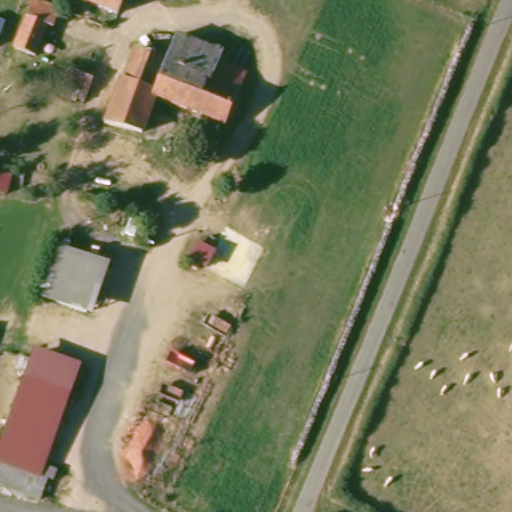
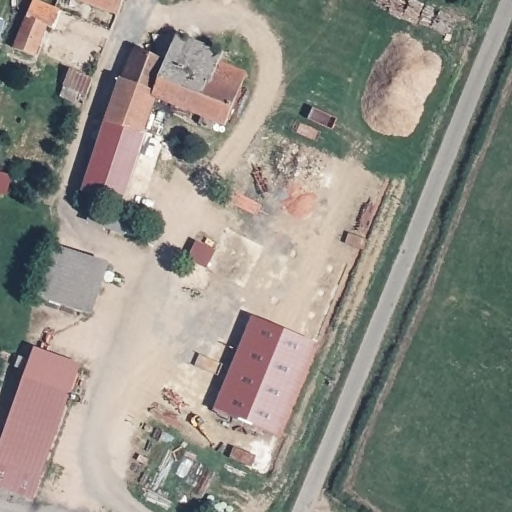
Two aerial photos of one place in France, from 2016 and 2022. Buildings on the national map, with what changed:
unchanged [(81,0),(130,0),(123,18),(81,0)]
unchanged [(20,54),(30,20),(35,4),(55,7),(60,8),(56,25),(49,23),(39,58),(26,56),(21,71),(12,71),(20,54)]
unchanged [(0,43),(0,21),(7,24),(0,43)]
unchanged [(152,101),(168,66),(180,41),(230,60),(225,71),(245,79),(226,130),(157,103),(152,101)]
unchanged [(152,101),(157,103),(143,137),(106,128),(112,111),(123,86),(136,54),(168,66),(152,101)]
unchanged [(62,93),(71,67),(95,77),(85,102),(62,93)]
unchanged [(0,173),(13,178),(8,198),(0,195),(0,173)]
unchanged [(190,260),(198,243),(217,253),(207,271),(190,260)]
unchanged [(56,247),(111,266),(93,319),(36,299),(56,247)]
new [(215,410),(253,318),(315,342),(277,434),(215,410)]
unchanged [(0,449),(36,350),(82,367),(47,469),(57,473),(53,484),(49,481),(42,504),(0,487),(0,449)]

